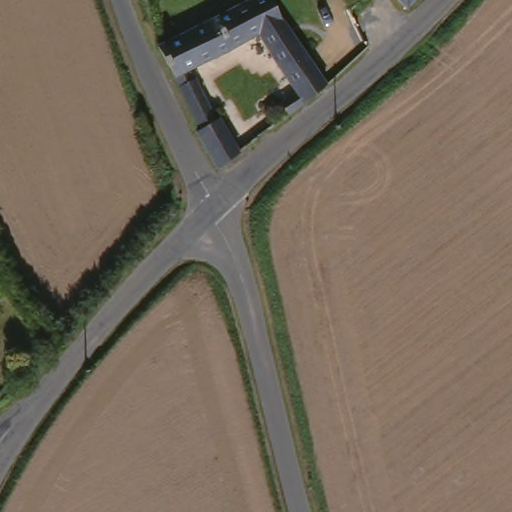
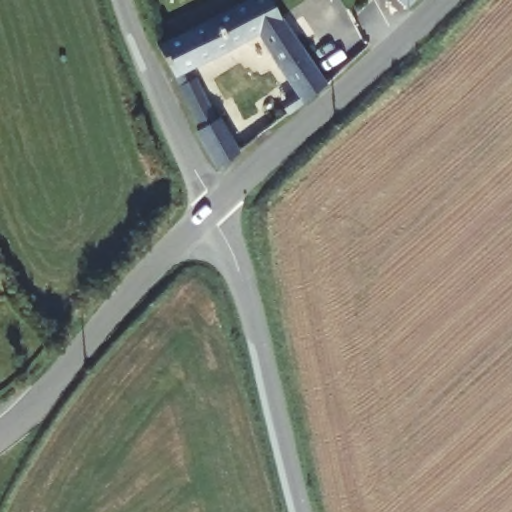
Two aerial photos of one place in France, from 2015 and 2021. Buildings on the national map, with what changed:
unchanged [(276,0),(282,10),(330,77),(322,82),(290,110),(282,98),(297,85),(261,31),(211,58),(191,69),(215,119),(219,117),(227,133),(237,152),(219,168),(211,155),(201,135),(175,74),(174,73),(160,46),(214,19),(249,0),(276,0)]
unchanged [(406,0),(420,0),(413,7),(406,0)]

